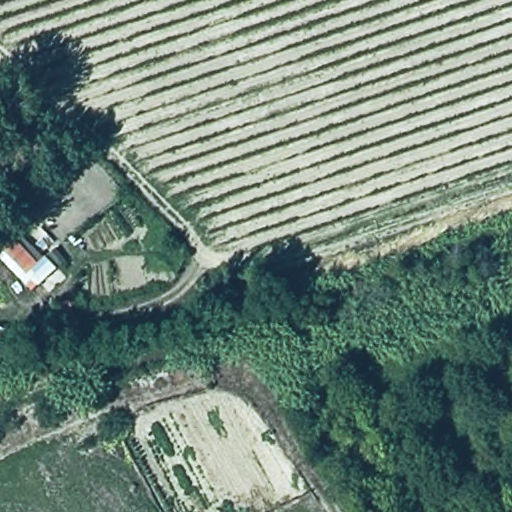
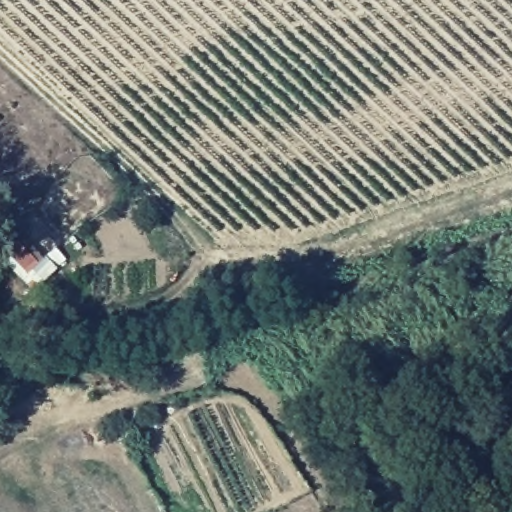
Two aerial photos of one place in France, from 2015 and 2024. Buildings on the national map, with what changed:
unchanged [(0,266),(0,229),(5,223),(37,264),(48,250),(62,270),(28,298),(0,266)]

